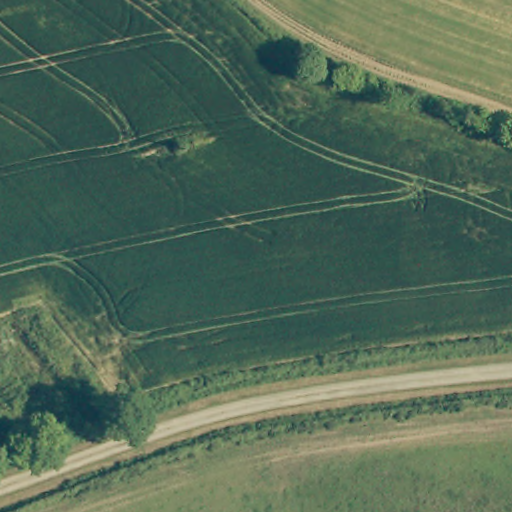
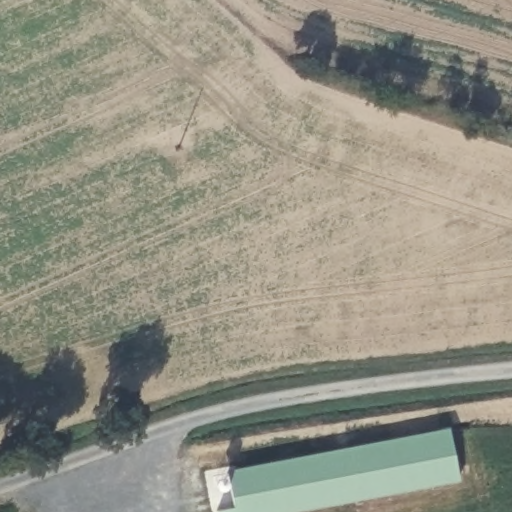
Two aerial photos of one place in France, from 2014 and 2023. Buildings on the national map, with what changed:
new [(227,475),(448,433),(457,478),(286,512),(219,512),(234,509),(227,475)]

